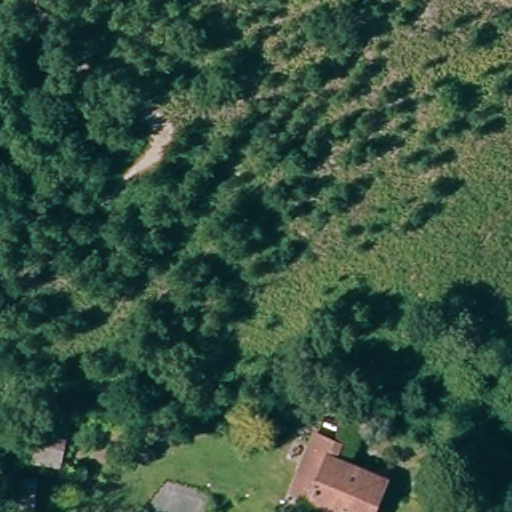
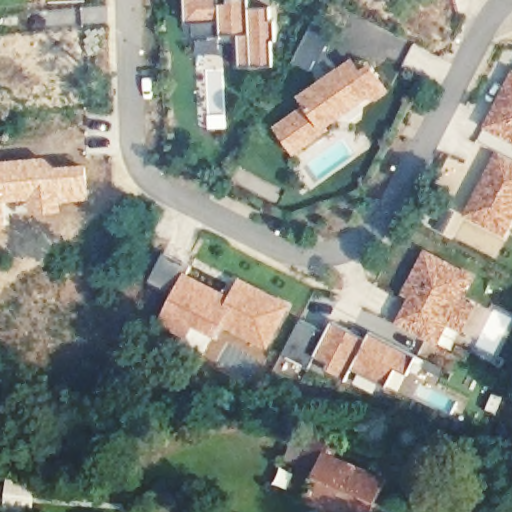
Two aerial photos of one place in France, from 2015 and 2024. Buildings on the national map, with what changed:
new [(250,0),(250,10),(271,10),(272,24),(276,24),(277,44),(273,45),(274,70),(240,71),(238,39),(221,39),(195,40),(194,27),(186,27),(185,0),(221,0),(229,0),(239,0),(250,0)]
new [(296,155),(279,131),(289,124),(288,122),(309,107),(304,100),(322,87),(321,86),(331,79),(320,65),(319,66),(315,64),(310,74),(293,65),(300,51),(313,26),(334,37),(323,59),(333,64),(339,73),(352,64),(361,76),(370,70),(387,93),(377,100),(374,95),(361,104),(326,130),(328,132),(296,155)]
new [(512,79),(512,144),(486,131),(512,79)]
new [(62,202),(63,213),(31,214),(31,201),(7,202),(9,226),(0,227),(0,161),(47,156),(57,166),(88,165),(91,200),(62,202)]
new [(512,163),(512,222),(505,237),(467,217),(499,156),(512,163)]
new [(161,325),(175,298),(149,284),(164,255),(191,270),(186,280),(221,297),(223,292),(233,297),(238,286),(285,310),(267,345),(222,322),(214,337),(203,358),(180,346),(184,337),(161,325)]
new [(459,337),(444,330),(435,348),(397,328),(412,300),(405,297),(408,290),(425,256),(470,280),(460,298),(475,305),(459,337)]
new [(355,368),(349,379),(327,369),(330,363),(317,356),(312,366),(285,353),(302,318),(328,332),(334,321),(368,338),(372,332),(418,356),(410,374),(402,390),(389,386),(355,368)]
unchanged [(63,433),(60,461),(32,458),(39,429),(63,433)]
unchanged [(364,512),(350,512),(290,487),(312,430),(333,439),(329,450),(379,470),(364,512)]
unchanged [(32,512),(18,512),(14,511),(16,480),(35,482),(32,512)]

